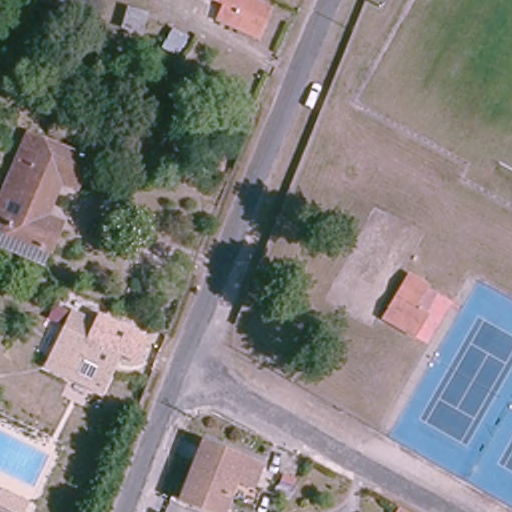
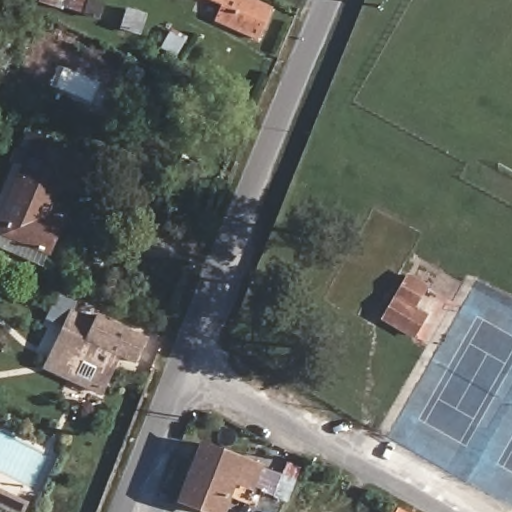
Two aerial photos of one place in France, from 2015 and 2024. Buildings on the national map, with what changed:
unchanged [(102,19),(40,3),(41,0),(100,0),(107,2),(102,19)]
unchanged [(274,5),(260,38),(219,19),(222,6),(210,0),(262,0),(274,5)]
unchanged [(140,36),(121,32),(125,13),(145,17),(140,36)]
unchanged [(191,43),(180,57),(166,50),(176,31),(191,43)]
unchanged [(13,93),(0,86),(0,81),(5,68),(22,76),(13,93)]
unchanged [(93,157),(82,183),(61,174),(43,210),(68,221),(50,263),(0,240),(0,192),(27,128),(93,157)]
unchanged [(407,272),(425,283),(412,302),(426,311),(413,333),(383,314),(407,272)]
unchanged [(88,378),(96,363),(77,353),(70,368),(49,357),(59,344),(74,312),(94,323),(100,312),(150,332),(139,362),(116,355),(111,370),(105,385),(88,378)]
unchanged [(267,467),(257,489),(238,481),(224,512),(217,512),(182,495),(208,439),(267,467)]
unchanged [(408,512),(397,512),(400,507),(408,512)]

